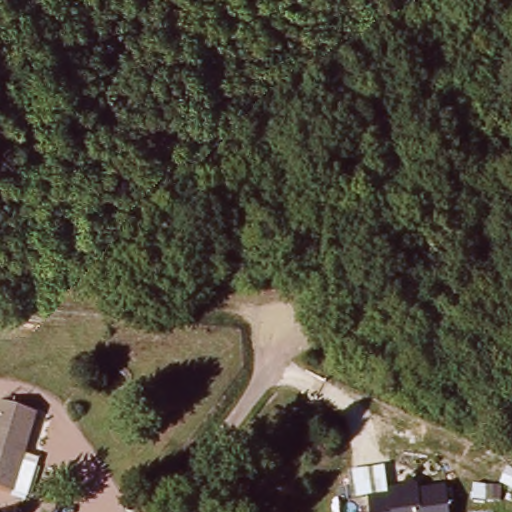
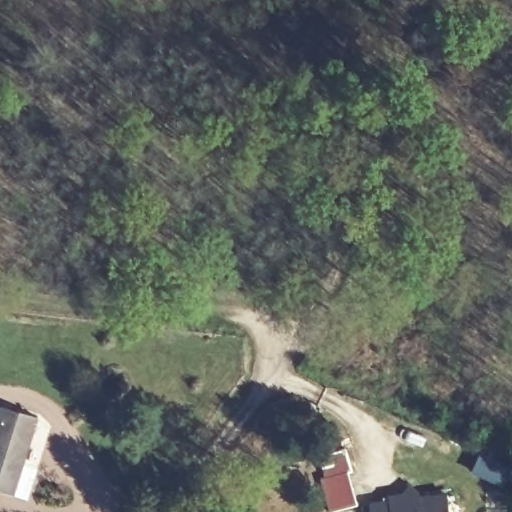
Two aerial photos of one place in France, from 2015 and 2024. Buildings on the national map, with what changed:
unchanged [(0,481),(0,433),(11,402),(49,414),(33,456),(47,461),(36,493),(22,487),(0,481)]
new [(320,478),(323,478),(316,451),(343,442),(351,470),(347,471),(356,505),(331,512),(329,512),(320,478)]
unchanged [(369,504),(389,501),(388,498),(402,497),(410,486),(418,495),(431,496),(448,494),(450,512),(370,512),(369,504)]

